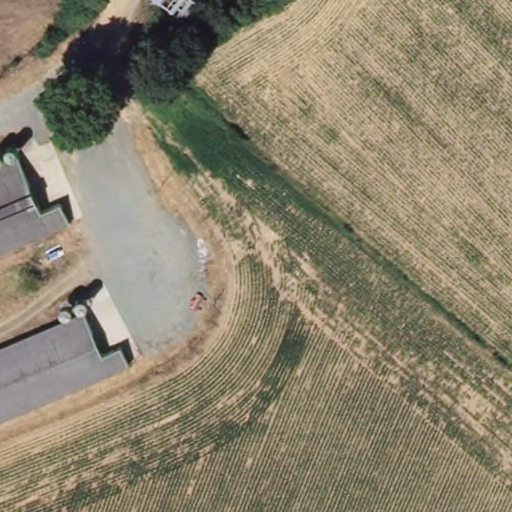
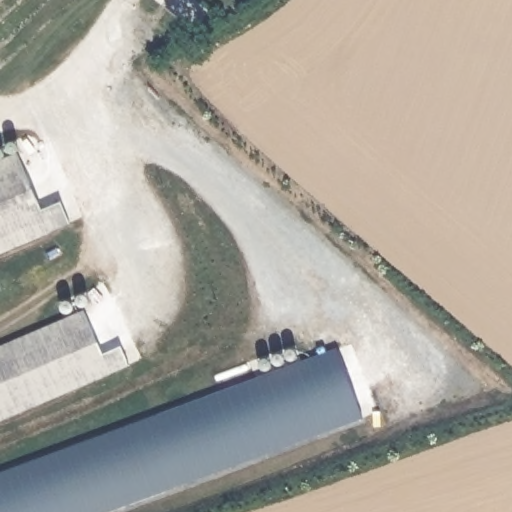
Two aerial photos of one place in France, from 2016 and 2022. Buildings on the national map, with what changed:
unchanged [(155,0),(183,0),(191,13),(171,25),(155,0)]
unchanged [(39,209),(57,202),(66,224),(0,252),(0,163),(18,155),(39,209)]
unchanged [(84,294),(87,306),(80,311),(99,353),(120,346),(127,367),(0,422),(0,344),(61,318),(56,304),(84,294)]
new [(263,371),(259,362),(294,349),(298,360),(336,349),(362,418),(105,512),(0,512),(0,473),(263,371)]

